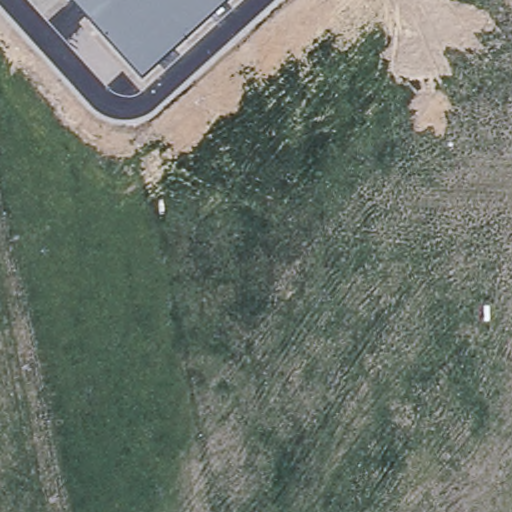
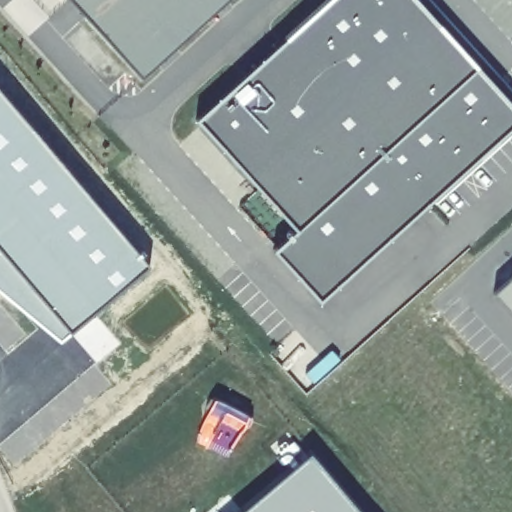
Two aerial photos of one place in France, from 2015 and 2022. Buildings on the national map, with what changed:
unchanged [(70,0),(228,0),(141,79),(70,0)]
new [(320,299),(275,249),(298,230),(197,119),(330,0),(414,0),(512,108),(512,127),(320,299)]
new [(63,344),(0,292),(0,89),(151,268),(63,344)]
new [(492,292),(512,275),(512,313),(492,292)]
new [(310,452),(362,512),(240,512),(310,452)]

